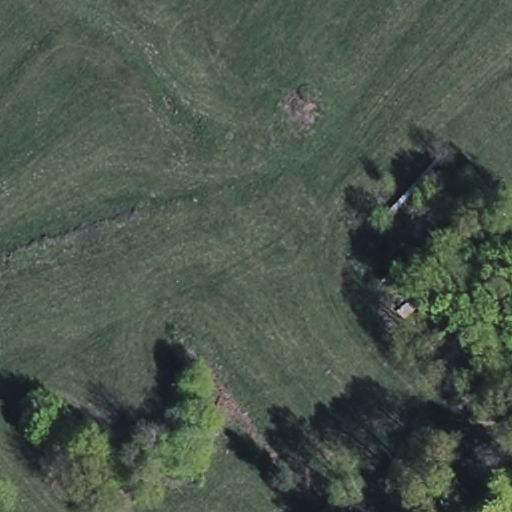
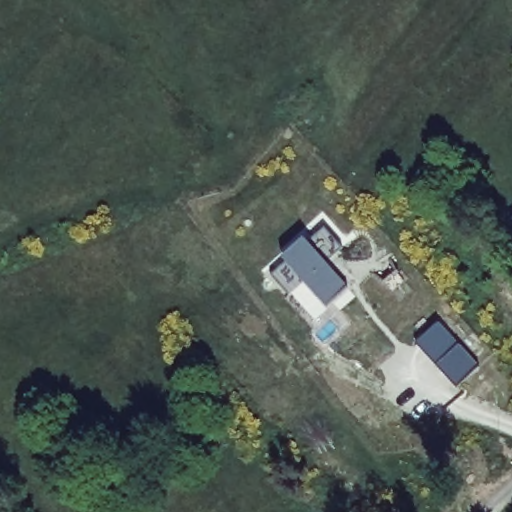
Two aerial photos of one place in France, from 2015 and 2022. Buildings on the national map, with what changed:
new [(341,248),(325,262),(348,288),(326,307),(304,282),(289,295),(271,275),(286,262),(281,256),(303,237),(307,242),(324,227),(341,248)]
new [(481,365),(455,387),(414,343),(441,320),(481,365)]

